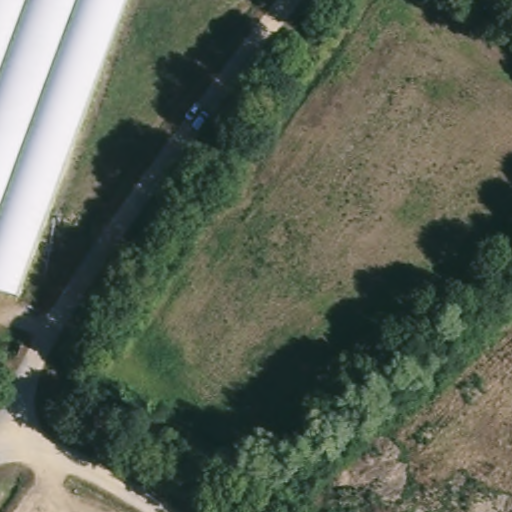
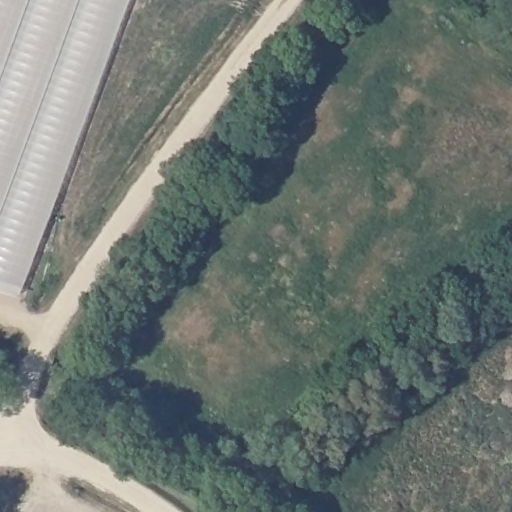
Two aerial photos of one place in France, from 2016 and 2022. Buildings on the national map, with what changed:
unchanged [(0,295),(0,0),(125,0),(15,299),(0,295)]

